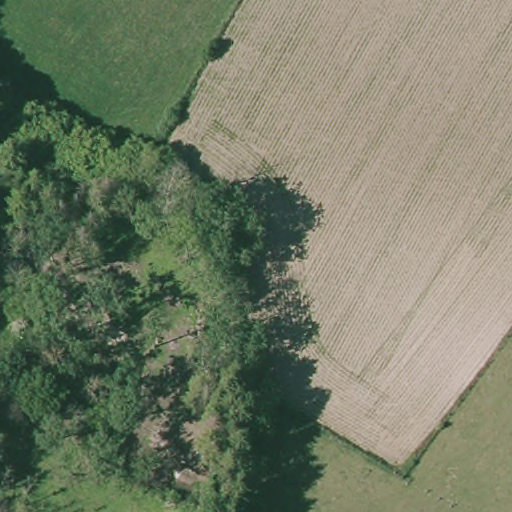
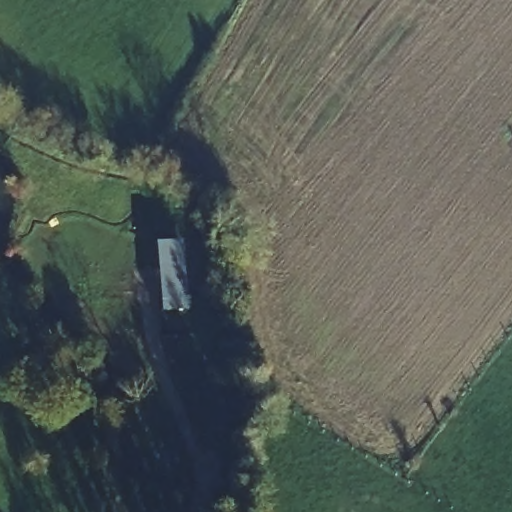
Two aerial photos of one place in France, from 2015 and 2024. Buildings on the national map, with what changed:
new [(182,243),(187,309),(163,310),(158,243),(182,243)]

